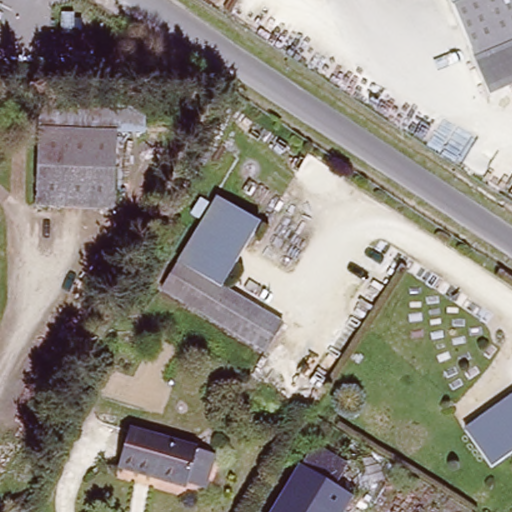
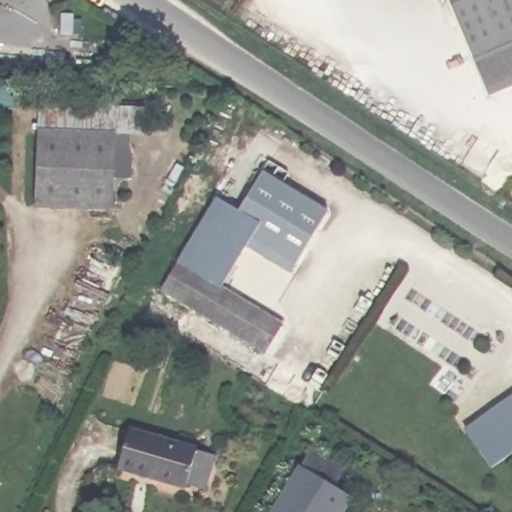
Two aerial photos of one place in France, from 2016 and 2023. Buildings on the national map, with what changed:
unchanged [(512,0),(512,41),(471,58),(446,0),(512,0)]
unchanged [(74,34),(60,34),(61,14),(74,14),(74,34)]
unchanged [(488,97),(471,58),(512,41),(512,87),(488,97)]
unchanged [(115,139),(38,135),(39,109),(143,112),(142,139),(115,139)]
unchanged [(112,214),(35,210),(38,135),(115,139),(112,214)]
new [(245,246),(260,222),(240,210),(262,172),(325,210),(290,273),(245,246)]
unchanged [(220,287),(282,324),(265,352),(162,289),(217,197),(260,222),(220,287)]
unchanged [(490,467),(463,429),(512,395),(512,452),(490,467)]
unchanged [(185,484),(185,487),(118,468),(129,429),(197,448),(196,450),(214,456),(204,489),(185,484)]
unchanged [(300,466),(312,444),(364,475),(352,497),(300,466)]
unchanged [(342,512),(272,512),(300,466),(352,497),(342,512)]

